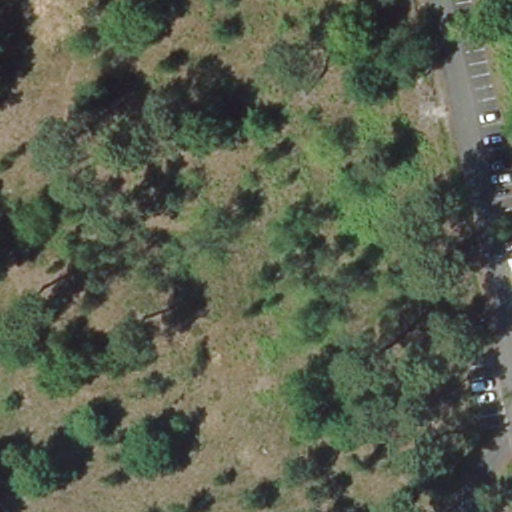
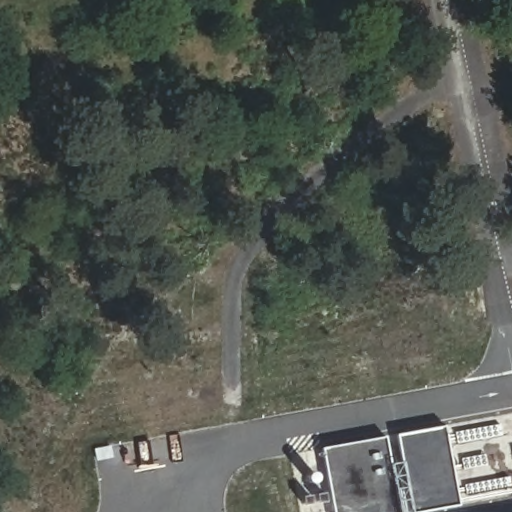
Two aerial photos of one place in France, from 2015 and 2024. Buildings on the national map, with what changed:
new [(330,451),(391,441),(396,470),(407,468),(401,436),(450,430),(465,509),(439,512),(341,512),(330,451)]

